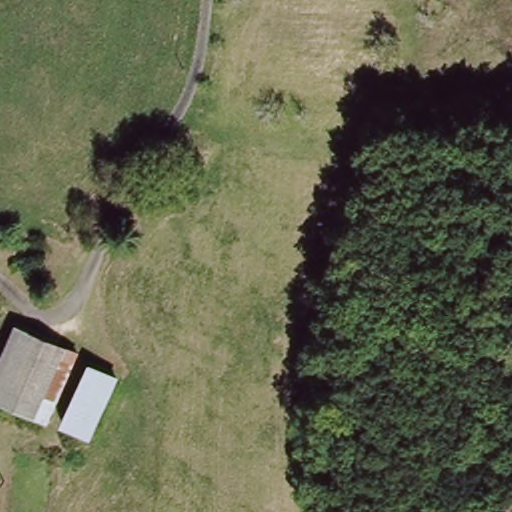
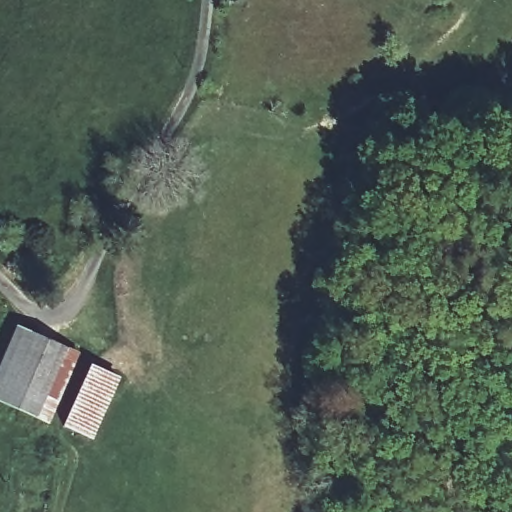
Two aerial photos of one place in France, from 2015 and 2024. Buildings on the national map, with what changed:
unchanged [(0,395),(0,384),(7,368),(30,325),(47,332),(72,345),(82,351),(51,420),(0,395)]
unchanged [(123,380),(99,433),(76,423),(101,369),(123,380)]

